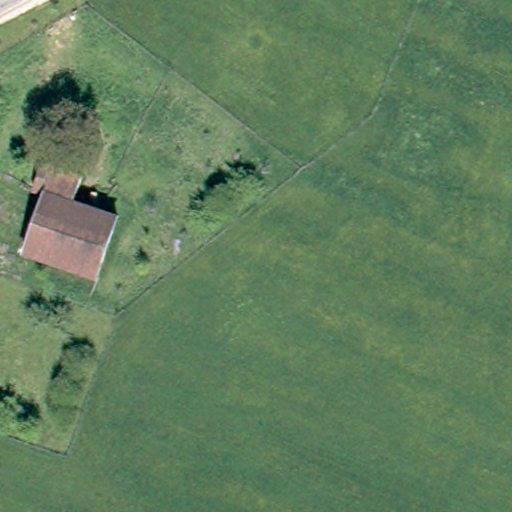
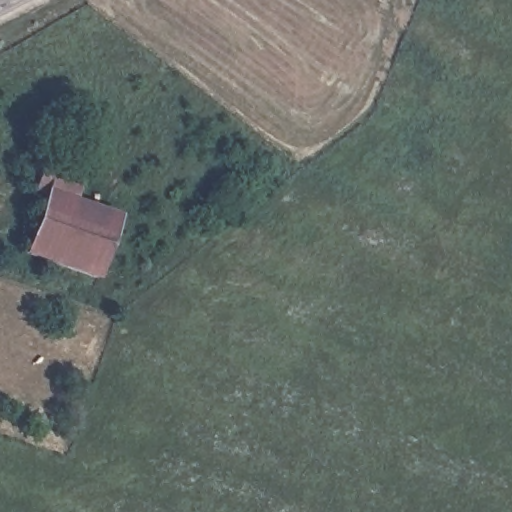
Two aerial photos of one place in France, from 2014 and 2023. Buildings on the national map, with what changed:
unchanged [(43,163),(86,177),(81,193),(78,202),(121,216),(100,281),(28,256),(50,196),(35,190),(40,173),(43,163)]

